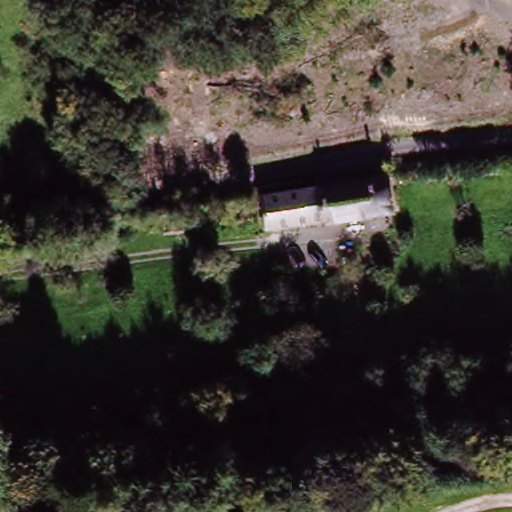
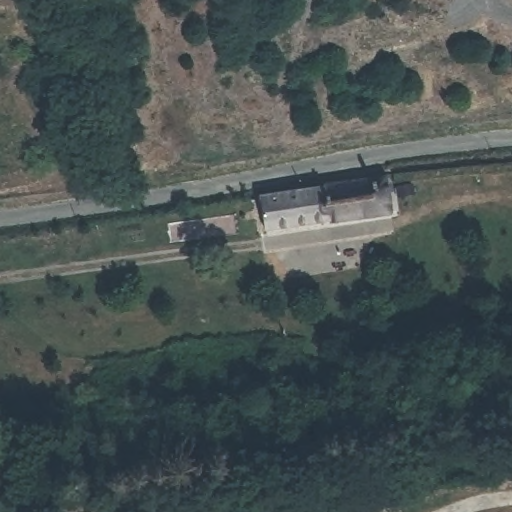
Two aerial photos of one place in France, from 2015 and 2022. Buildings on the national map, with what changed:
unchanged [(256,198),(367,183),(382,181),(385,208),(370,211),(257,228),(256,198)]

